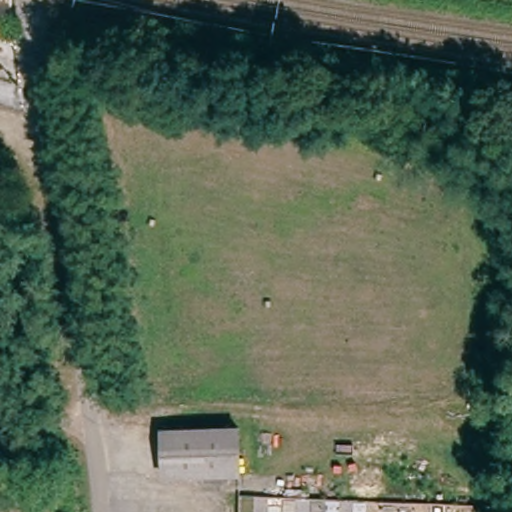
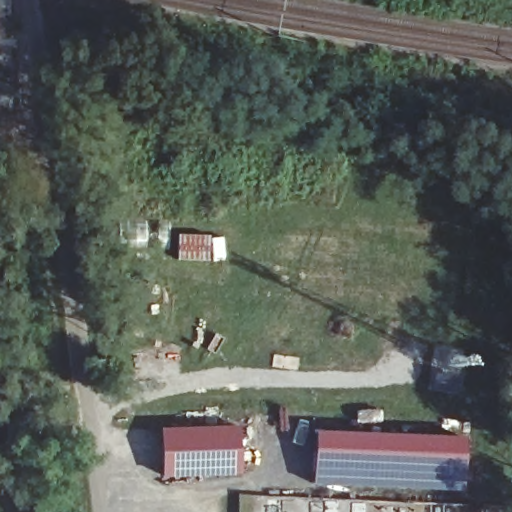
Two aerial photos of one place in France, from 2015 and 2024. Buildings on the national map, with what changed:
new [(312,486),(314,431),(465,437),(463,492),(312,486)]
unchanged [(234,437),(233,483),(162,487),(159,439),(234,437)]

